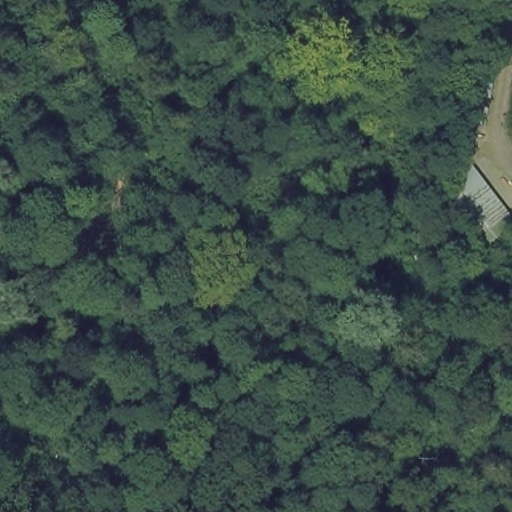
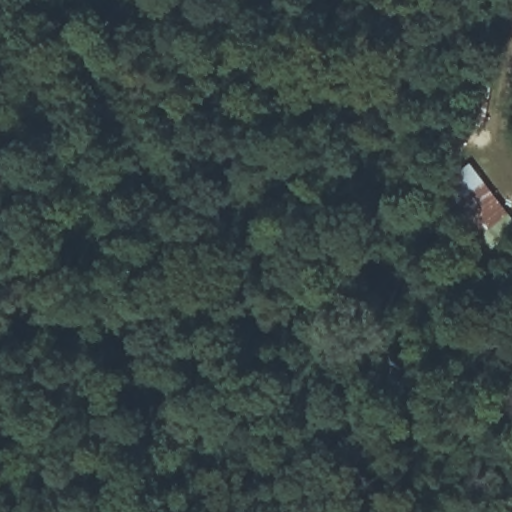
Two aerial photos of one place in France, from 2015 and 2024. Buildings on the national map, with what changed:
unchanged [(485,238),(472,249),(465,240),(464,237),(432,192),(466,160),(510,216),(485,238)]

